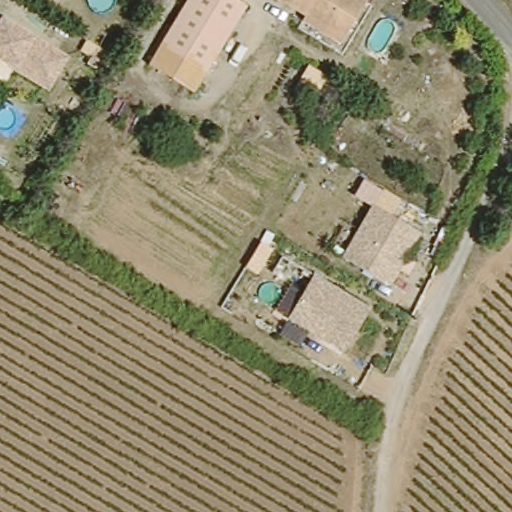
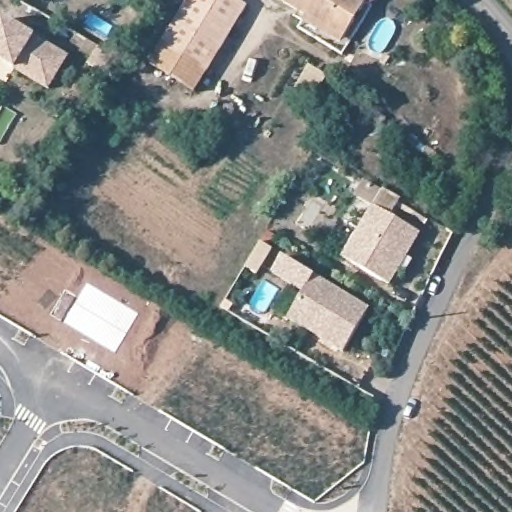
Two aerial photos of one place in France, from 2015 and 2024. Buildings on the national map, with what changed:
unchanged [(246,7),(207,71),(162,45),(189,0),(234,0),(246,7)]
unchanged [(371,2),(349,39),(305,12),(284,0),(367,0),(371,2)]
unchanged [(339,55),(295,32),(305,12),(349,39),(339,55)]
unchanged [(49,85),(16,66),(0,56),(0,23),(4,16),(68,54),(49,85)]
unchanged [(207,71),(194,93),(149,65),(162,45),(207,71)]
unchanged [(116,58),(105,75),(90,66),(101,49),(116,58)]
unchanged [(8,80),(0,74),(0,56),(16,66),(8,80)]
unchanged [(339,260),(372,205),(421,234),(391,290),(339,260)]
unchanged [(284,321),(309,278),(367,310),(344,355),(284,321)]
new [(115,352),(63,322),(87,282),(138,313),(115,352)]

